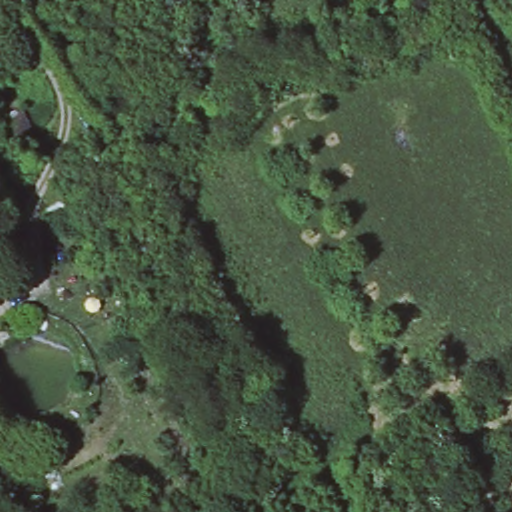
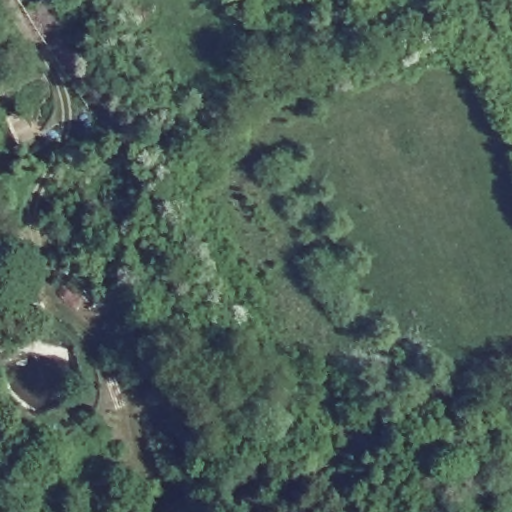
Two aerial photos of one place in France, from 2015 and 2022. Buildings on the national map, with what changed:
[]

